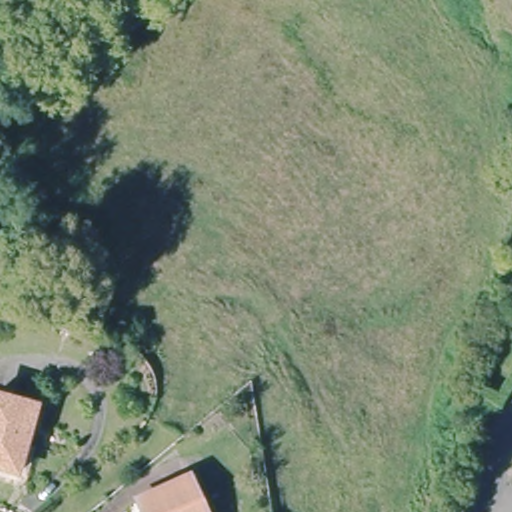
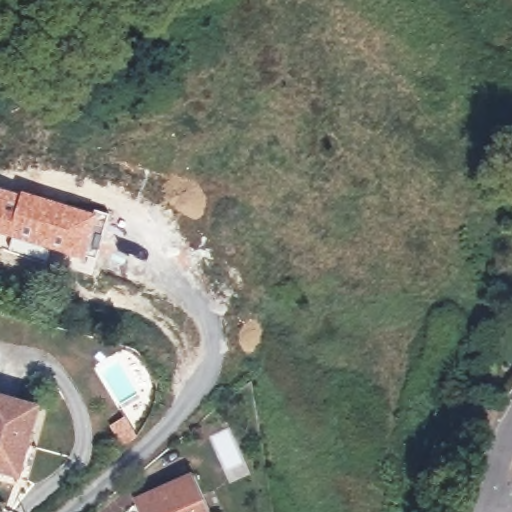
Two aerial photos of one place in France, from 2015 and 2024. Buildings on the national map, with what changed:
demolished [(0,187),(74,219),(57,258),(0,233),(0,187)]
new [(108,215),(100,237),(95,235),(86,261),(50,251),(46,262),(8,249),(0,247),(0,187),(31,193),(108,215)]
unchanged [(0,471),(0,401),(34,410),(15,475),(0,471)]
unchanged [(192,478),(207,512),(145,512),(141,501),(192,478)]

